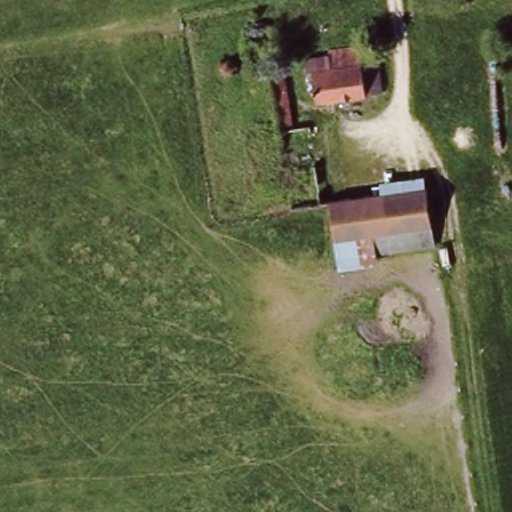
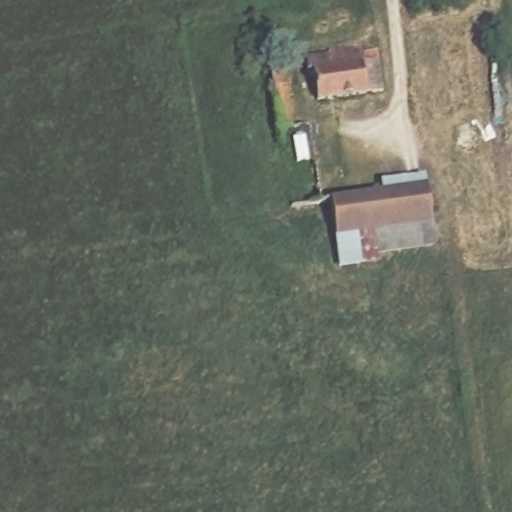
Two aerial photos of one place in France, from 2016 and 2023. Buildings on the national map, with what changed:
unchanged [(387,97),(317,106),(308,55),(380,48),(387,97)]
unchanged [(430,228),(385,234),(387,265),(342,273),(335,194),(426,186),(430,228)]

